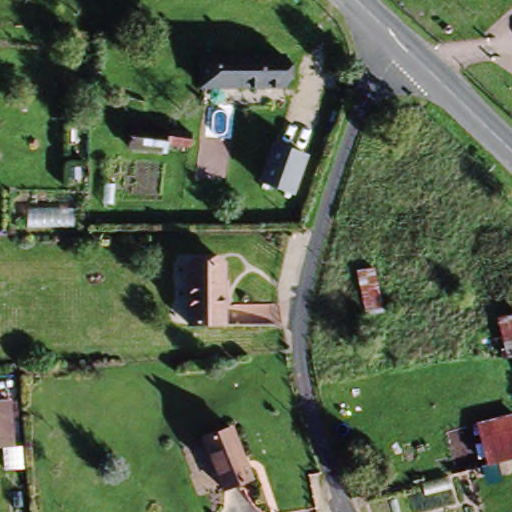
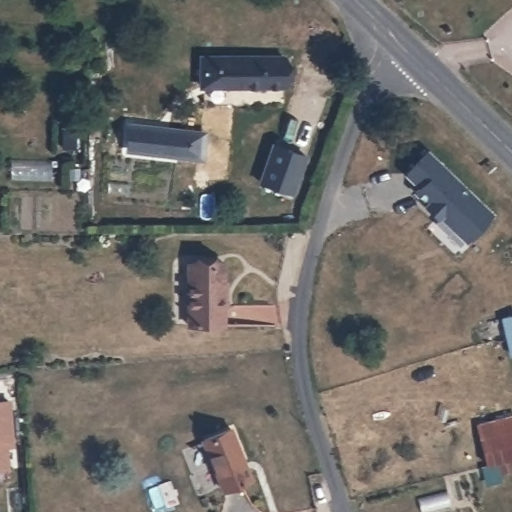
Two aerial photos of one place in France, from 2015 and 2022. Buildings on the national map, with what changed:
unchanged [(281,84),(205,89),(202,56),(280,51),(281,84)]
unchanged [(175,145),(147,148),(147,152),(128,154),(126,128),(176,129),(175,145)]
unchanged [(301,152),(290,191),(257,182),(268,144),(301,152)]
new [(492,212),(467,242),(426,205),(428,203),(415,190),(420,185),(406,172),(427,150),(492,212)]
unchanged [(182,327),(182,290),(182,266),(222,264),(223,287),(225,323),(182,327)]
demolished [(382,322),(367,325),(356,270),(372,266),(382,322)]
unchanged [(507,355),(500,321),(512,317),(512,354),(507,355)]
unchanged [(11,442),(0,444),(0,401),(5,401),(11,442)]
unchanged [(476,425),(512,416),(512,460),(485,467),(476,425)]
unchanged [(251,477),(220,490),(202,441),(232,430),(251,477)]

